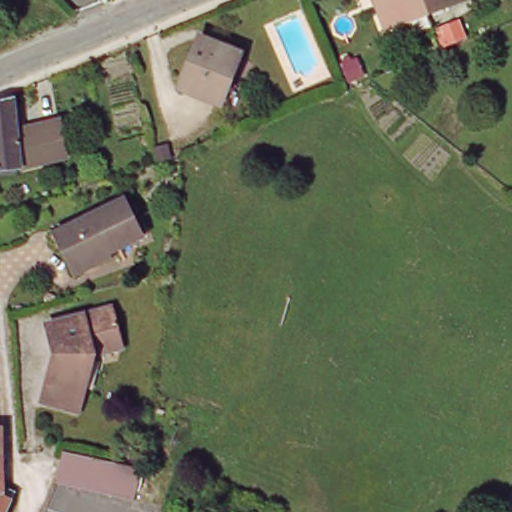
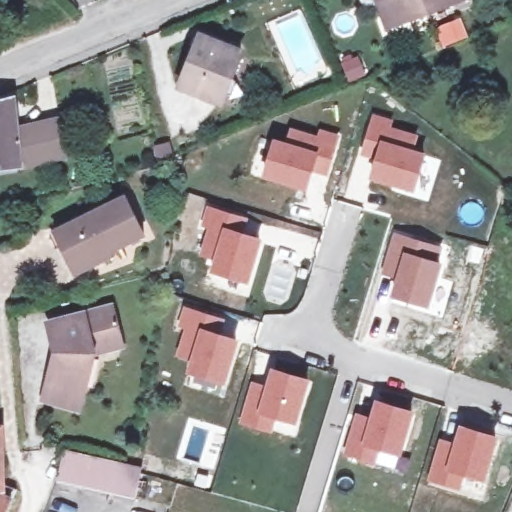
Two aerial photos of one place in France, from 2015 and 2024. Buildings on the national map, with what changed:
unchanged [(380,2),(386,0),(459,0),(430,11),(389,27),(380,2)]
unchanged [(180,89),(202,38),(222,46),(243,55),(240,60),(222,105),(180,89)]
unchanged [(61,124),(67,156),(17,169),(7,170),(0,171),(0,103),(15,100),(19,133),(44,127),(61,124)]
new [(372,112),(394,118),(392,125),(419,133),(415,148),(425,151),(414,190),(368,179),(374,159),(360,154),(372,112)]
new [(272,136),(285,140),(289,125),(317,133),(318,127),(340,133),(328,177),(313,172),(307,190),(262,177),(272,136)]
unchanged [(71,276),(51,234),(122,199),(142,236),(106,254),(107,258),(71,276)]
new [(206,225),(200,224),(206,204),(249,216),(245,231),(223,226),(212,260),(198,255),(206,225)]
new [(212,260),(223,226),(245,231),(263,236),(248,283),(209,271),(212,260)]
new [(393,230),(442,245),(437,260),(442,261),(428,307),(390,296),(394,278),(380,274),(393,230)]
unchanged [(125,336),(96,344),(80,400),(45,390),(56,350),(60,346),(52,313),(72,308),(115,296),(125,336)]
new [(183,328),(177,326),(183,305),(226,316),(222,332),(200,326),(188,360),(175,356),(183,328)]
new [(188,360),(200,326),(222,332),(238,336),(223,385),(185,373),(188,360)]
new [(250,379),(265,383),(270,365),(310,377),(297,425),(276,420),(272,433),(238,422),(250,379)]
new [(355,411),(368,415),(375,397),(414,409),(397,469),(341,453),(355,411)]
new [(440,436),(453,440),(458,423),(497,433),(483,481),(463,475),(460,488),(427,480),(440,436)]
unchanged [(66,452),(143,470),(137,500),(59,482),(66,452)]
unchanged [(1,470),(14,475),(0,510),(0,470),(1,470)]

